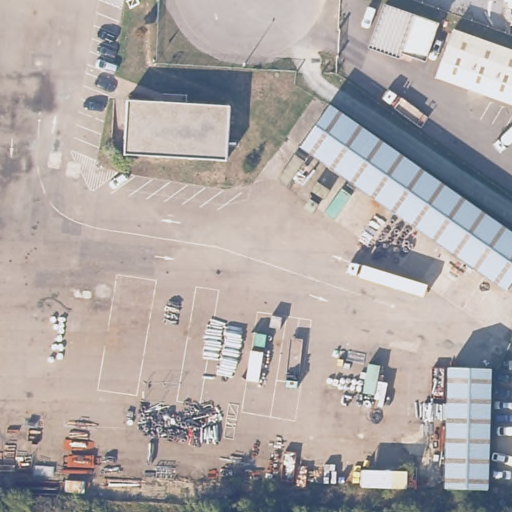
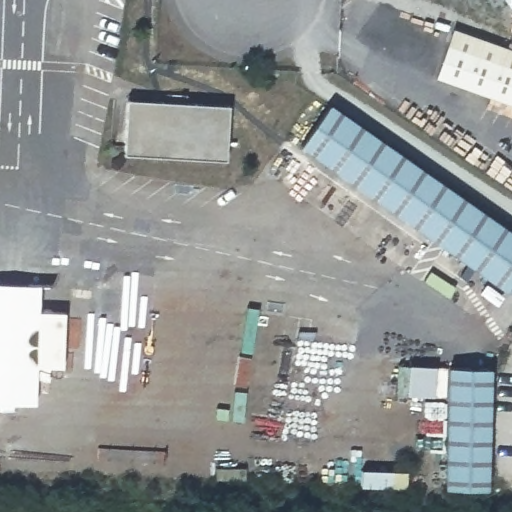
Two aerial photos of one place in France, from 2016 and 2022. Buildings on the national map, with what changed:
demolished [(385,0),(387,0),(436,18),(425,54),(413,50),(401,46),(399,52),(370,42),(385,0)]
unchanged [(512,103),(432,75),(448,29),(512,51),(512,103)]
unchanged [(413,50),(411,56),(399,52),(401,46),(413,50)]
unchanged [(229,101),(226,156),(122,150),(126,95),(229,101)]
unchanged [(512,276),(508,282),(298,143),(325,103),(512,226),(512,276)]
new [(42,283),(41,309),(67,309),(64,368),(39,367),(38,404),(0,403),(0,281),(42,283)]
unchanged [(492,367),(487,491),(440,489),(445,364),(492,367)]
unchanged [(403,477),(403,492),(357,490),(358,474),(403,477)]

